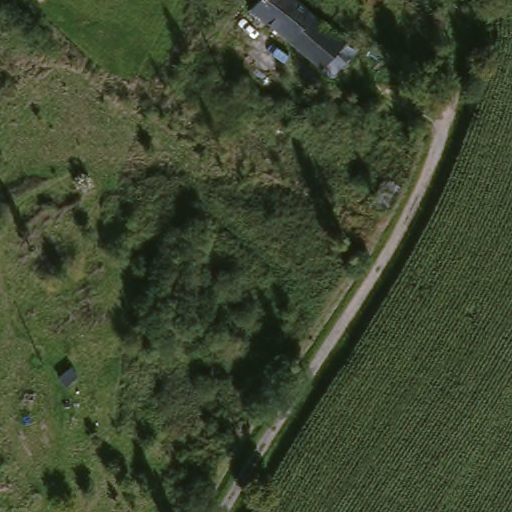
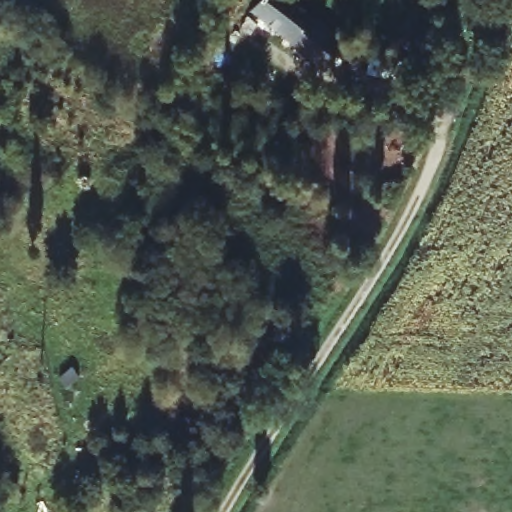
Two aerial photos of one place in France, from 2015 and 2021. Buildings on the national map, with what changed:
unchanged [(324,69),(252,10),(261,0),(294,0),(345,41),(324,69)]
unchanged [(384,148),(394,120),(421,130),(411,158),(384,148)]
unchanged [(375,206),(385,181),(401,188),(390,213),(375,206)]

